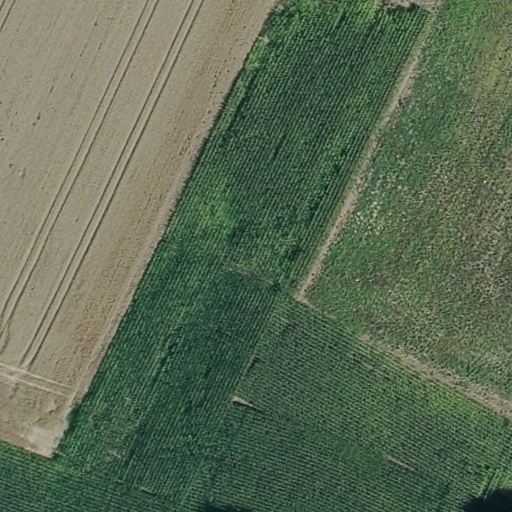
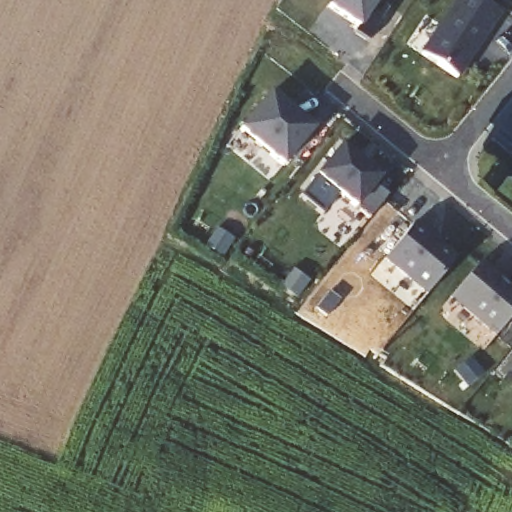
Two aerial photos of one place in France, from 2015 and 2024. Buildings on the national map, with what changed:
new [(356,28),(325,8),(330,0),(379,0),(391,7),(369,40),(367,42),(352,33),(356,28)]
new [(477,0),(500,14),(457,78),(420,53),(455,0),(477,0)]
new [(267,95),(297,119),(298,118),(312,129),(282,165),(239,130),(267,95)]
new [(368,220),(315,178),(340,146),(377,179),(372,186),(386,196),(368,220)]
new [(511,170),(512,169),(512,171),(511,170)]
new [(425,236),(422,238),(434,249),(437,246),(454,259),(427,293),(385,259),(412,226),(425,236)]
new [(494,337),(448,300),(480,262),(499,277),(497,282),(504,289),(507,285),(512,289),(512,315),(494,337)]

